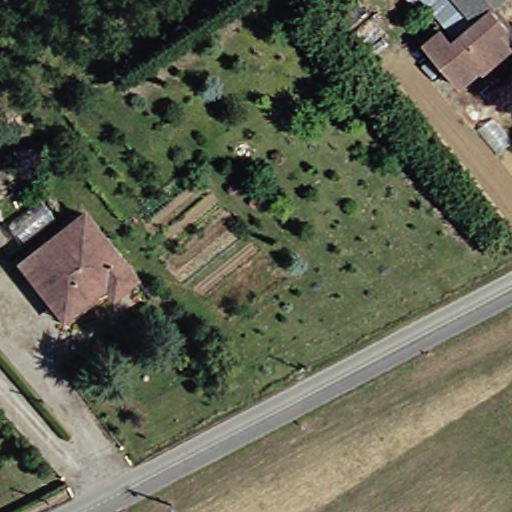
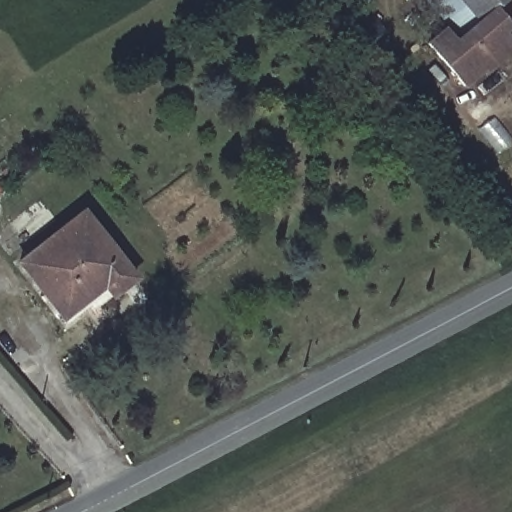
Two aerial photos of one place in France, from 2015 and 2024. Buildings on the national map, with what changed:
unchanged [(422,49),(438,36),(449,49),(474,28),(467,21),(450,0),(508,0),(489,16),(503,33),(496,39),(506,50),(458,91),(422,49)]
unchanged [(467,21),(452,34),(426,0),(450,0),(467,21)]
unchanged [(19,263),(82,214),(134,279),(106,300),(103,296),(66,324),(19,263)]

